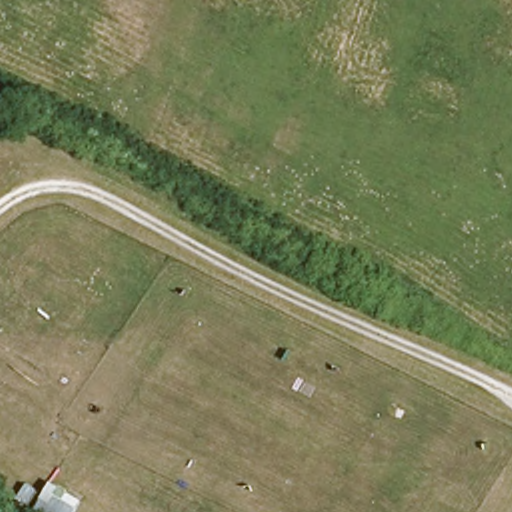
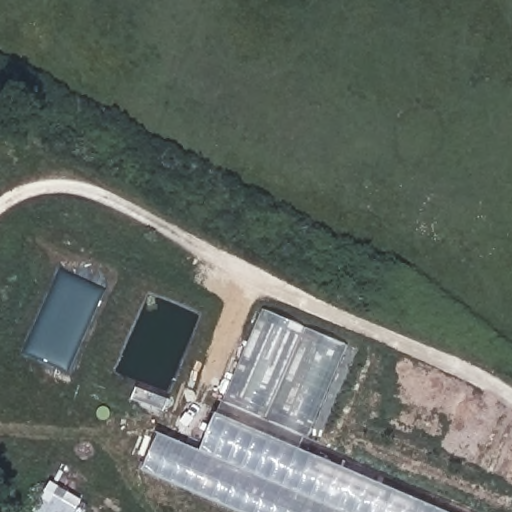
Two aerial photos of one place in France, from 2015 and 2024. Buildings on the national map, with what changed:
new [(307,439),(222,402),(262,309),(347,345),(307,439)]
new [(298,449),(216,414),(222,402),(303,437),(298,449)]
new [(201,451),(216,414),(445,512),(340,512),(201,451)]
new [(340,512),(242,512),(144,470),(159,433),(201,451),(340,512)]
new [(75,512),(34,512),(50,481),(82,499),(75,512)]

